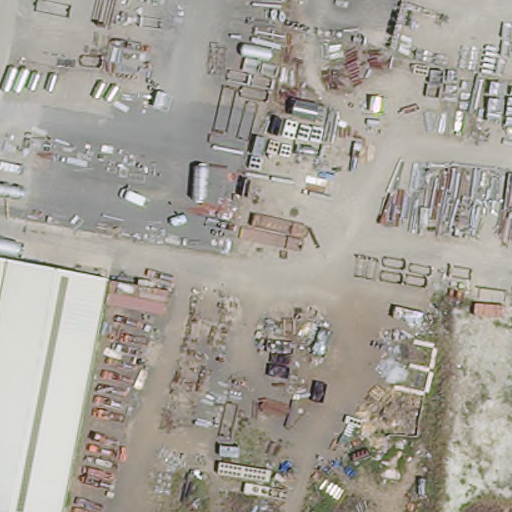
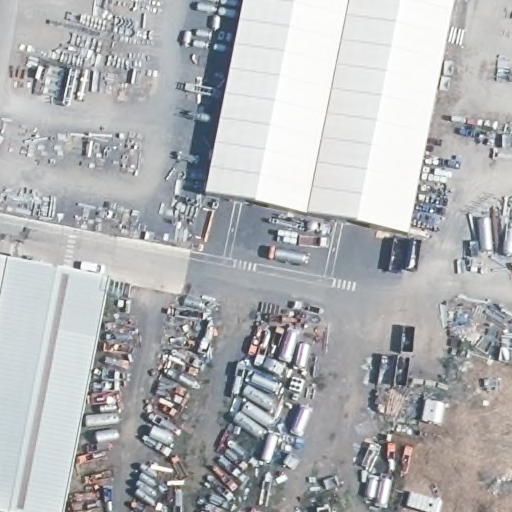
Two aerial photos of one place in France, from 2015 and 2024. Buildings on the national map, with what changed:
new [(205,197),(244,0),(455,0),(409,237),(205,197)]
unchanged [(105,283),(64,512),(0,512),(0,263),(105,283)]

